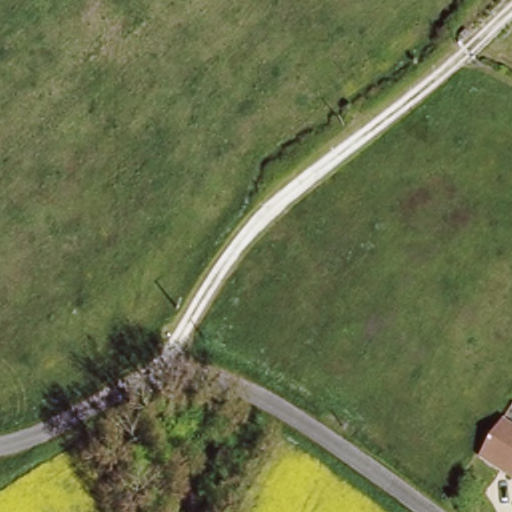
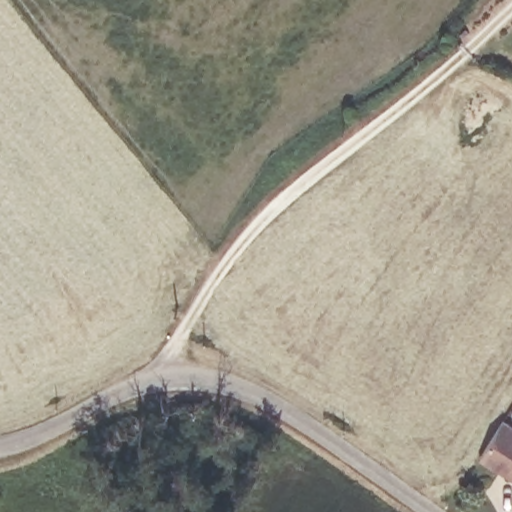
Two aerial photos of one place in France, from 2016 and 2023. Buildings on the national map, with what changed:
unchanged [(502,417),(512,424),(512,478),(478,456),(502,417)]

